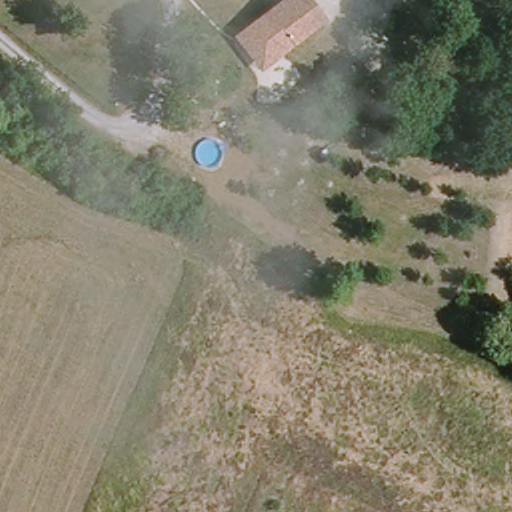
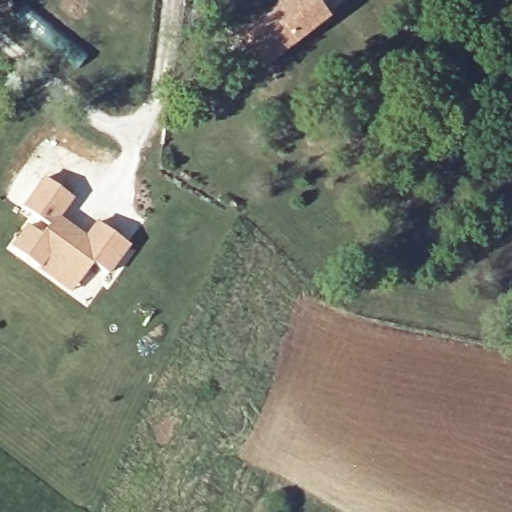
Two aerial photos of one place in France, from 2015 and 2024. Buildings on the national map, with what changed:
unchanged [(329,20),(262,71),(235,36),(281,0),(313,0),(329,20)]
new [(39,267),(12,247),(28,225),(42,235),(49,225),(25,206),(46,178),(73,197),(59,217),(86,239),(98,223),(129,245),(107,275),(92,263),(80,280),(71,291),(39,267)]

